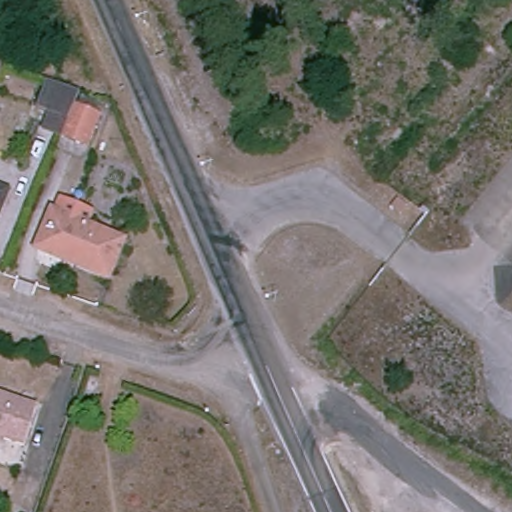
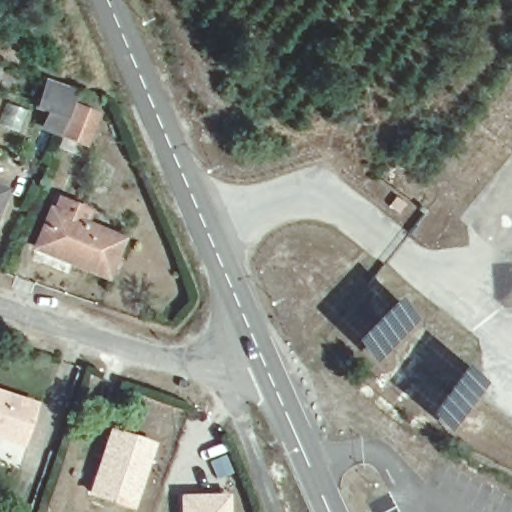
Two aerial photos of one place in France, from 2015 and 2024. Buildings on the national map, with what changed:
unchanged [(94,143),(67,132),(51,127),(57,110),(43,105),(54,78),(84,89),(79,102),(108,113),(94,143)]
unchanged [(9,185),(5,195),(0,207),(0,181),(9,185)]
unchanged [(125,236),(112,270),(43,245),(55,210),(125,236)]
unchanged [(25,438),(0,429),(0,385),(39,398),(25,438)]
new [(108,426),(156,442),(133,510),(86,493),(108,426)]
new [(230,512),(178,512),(178,493),(230,491),(230,512)]

